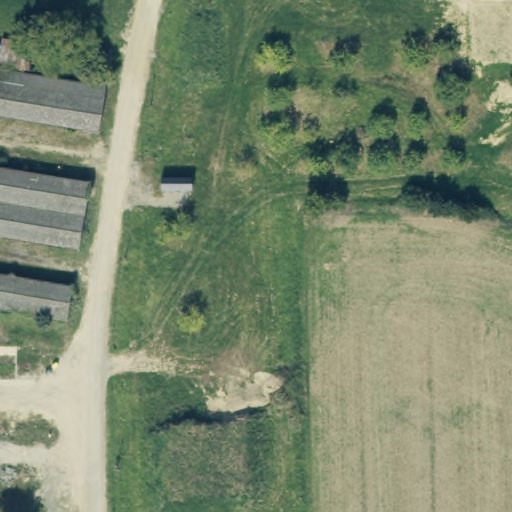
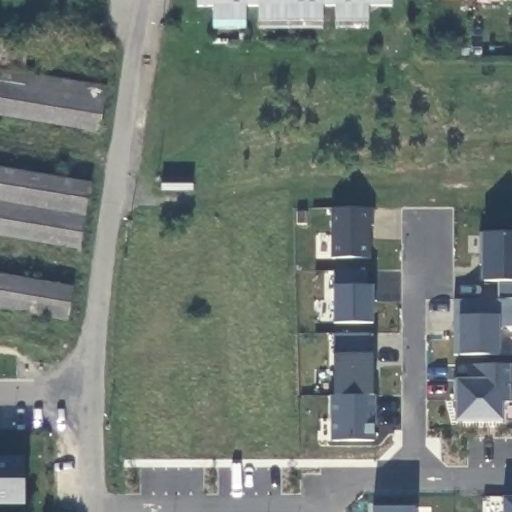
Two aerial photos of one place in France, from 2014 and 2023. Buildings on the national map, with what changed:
new [(368,22),(335,23),(335,7),(321,7),(322,22),(259,22),(258,7),(244,7),(244,22),(214,22),(214,7),(197,7),(197,0),(392,0),(392,8),(368,8),(368,22)]
unchanged [(0,41),(28,46),(26,62),(40,65),(37,76),(110,85),(104,130),(0,117),(0,41)]
unchanged [(76,251),(0,238),(0,169),(89,184),(76,251)]
new [(373,208),(373,226),(370,226),(371,258),(330,258),(329,208),(373,208)]
new [(492,299),(493,283),(473,282),(473,231),(512,231),(512,299),(492,299)]
new [(364,271),(366,287),(375,288),(375,324),(336,324),(336,287),(335,273),(364,271)]
unchanged [(70,320),(0,309),(0,275),(76,287),(70,320)]
new [(375,356),(375,441),(331,441),(334,396),(334,354),(333,334),(370,335),(375,356)]
new [(470,380),(468,365),(510,366),(512,366),(512,403),(503,403),(503,422),(456,423),(455,379),(470,380)]
new [(25,504),(0,504),(0,457),(26,456),(25,504)]
new [(505,498),(512,498),(512,512),(505,512),(505,498)]

